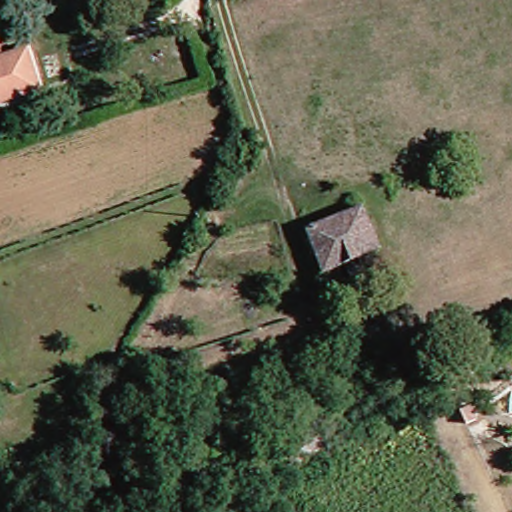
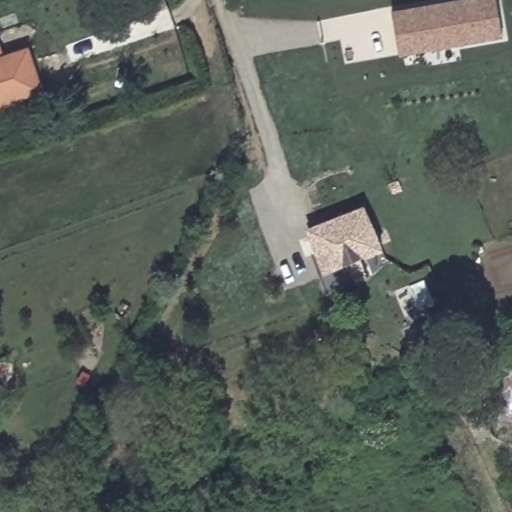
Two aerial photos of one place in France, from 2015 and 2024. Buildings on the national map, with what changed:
new [(390,13),(464,0),(493,0),(500,39),(428,51),(397,57),(393,36),(390,13)]
unchanged [(0,58),(19,52),(29,82),(31,92),(0,104),(0,58)]
unchanged [(322,272),(303,227),(357,205),(375,250),(322,272)]

